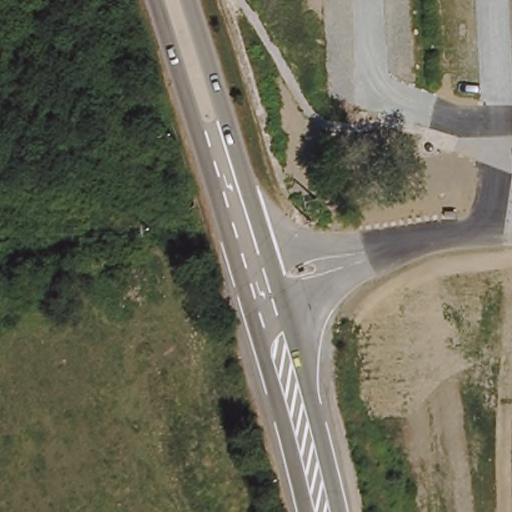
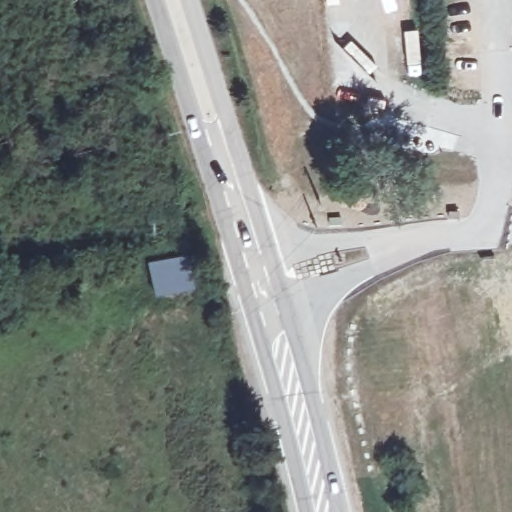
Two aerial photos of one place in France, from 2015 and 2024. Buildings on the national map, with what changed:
new [(187,257),(194,289),(154,297),(149,263),(187,257)]

